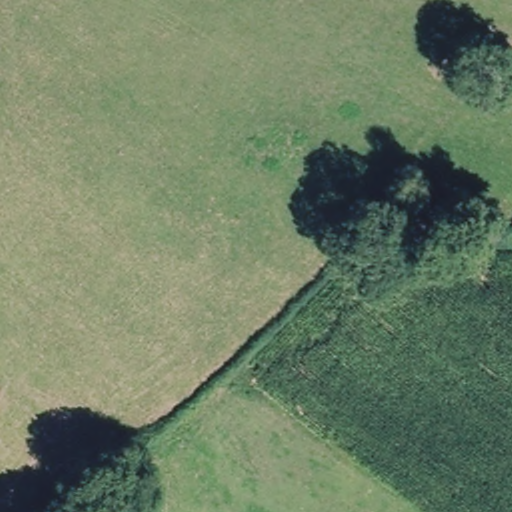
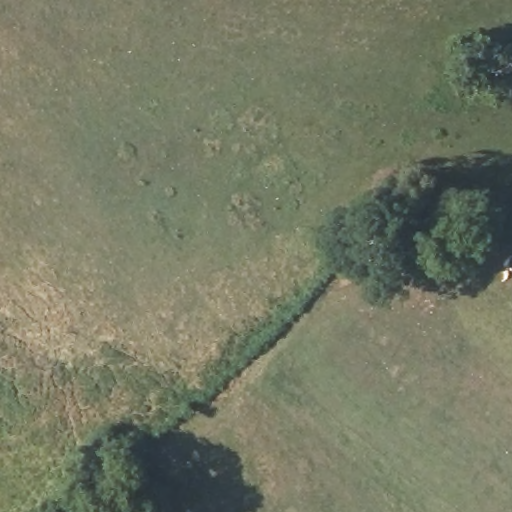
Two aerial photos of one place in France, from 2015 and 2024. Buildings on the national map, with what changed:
[]

